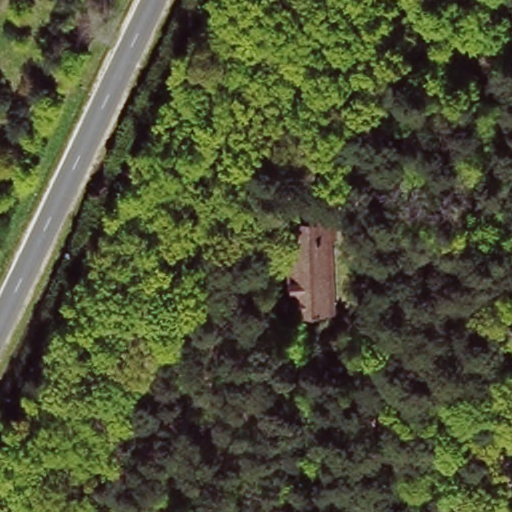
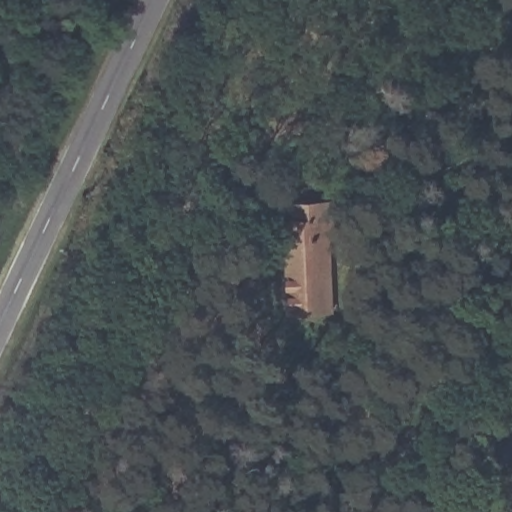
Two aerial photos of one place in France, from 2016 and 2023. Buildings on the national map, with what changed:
unchanged [(337,234),(331,234),(329,307),(287,306),(290,212),(297,212),(298,200),(317,200),(337,200),(337,234)]

